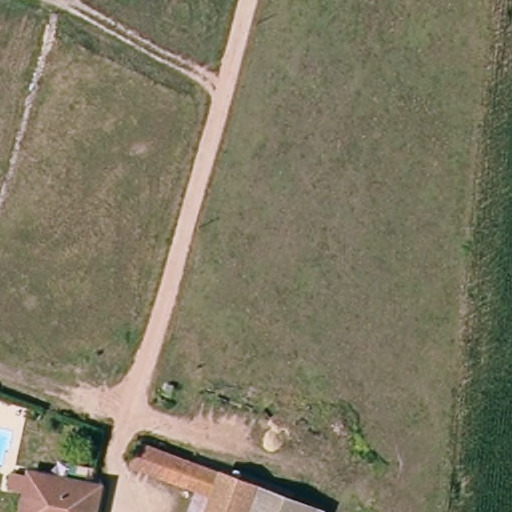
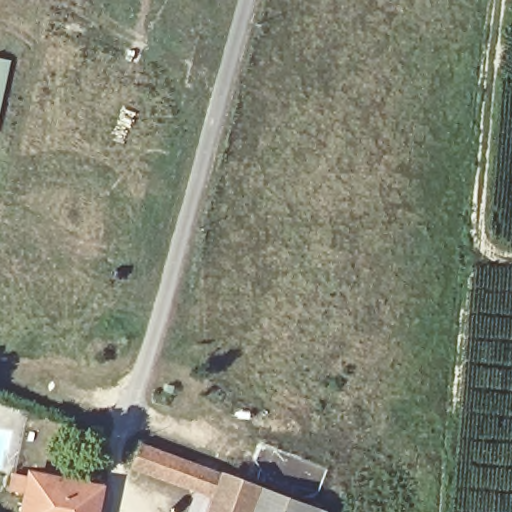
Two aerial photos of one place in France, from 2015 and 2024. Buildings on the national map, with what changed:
new [(10,60),(0,110),(0,57),(10,60)]
unchanged [(215,495),(134,465),(140,444),(222,475),(215,495)]
unchanged [(29,490),(15,487),(16,475),(30,476),(31,470),(61,475),(65,457),(91,462),(89,480),(98,481),(94,512),(25,512),(29,490)]
unchanged [(245,512),(209,512),(215,495),(222,475),(254,487),(245,512)]
unchanged [(315,508),(313,512),(245,512),(254,487),(315,508)]

